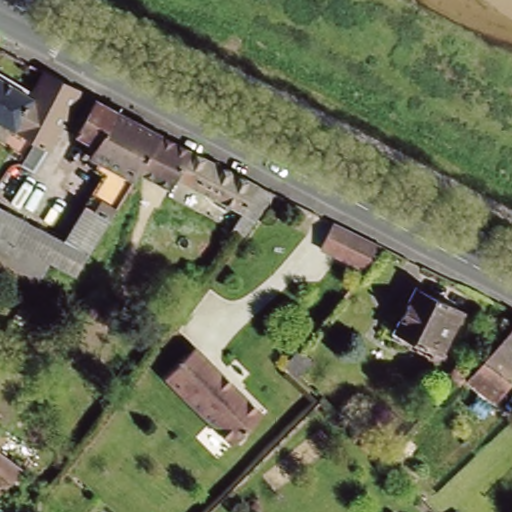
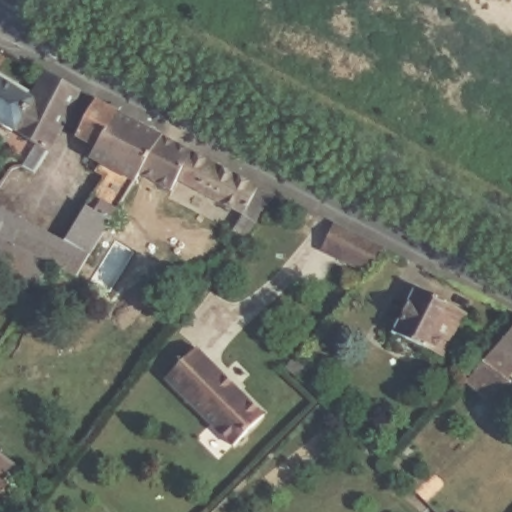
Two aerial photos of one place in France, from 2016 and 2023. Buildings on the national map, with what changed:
unchanged [(49,146),(48,148),(0,121),(0,77),(32,95),(45,72),(47,72),(79,90),(59,128),(49,146)]
unchanged [(0,233),(0,196),(14,177),(23,174),(42,184),(36,194),(30,191),(27,197),(26,196),(23,202),(27,204),(22,213),(67,236),(111,166),(92,156),(97,146),(77,135),(96,99),(162,134),(162,135),(141,170),(115,213),(114,214),(103,234),(79,272),(53,259),(0,233)]
unchanged [(244,213),(198,188),(202,180),(176,166),(166,184),(141,170),(162,135),(259,186),(275,193),(246,237),(235,229),(244,213)]
unchanged [(44,178),(34,173),(41,160),(48,148),(58,153),(44,178)]
unchanged [(361,270),(316,249),(329,222),(380,247),(361,270)]
unchanged [(475,306),(473,310),(469,308),(450,346),(455,348),(453,352),(398,325),(421,280),(475,306)]
unchanged [(512,373),(512,384),(498,399),(471,375),(512,330),(512,371),(511,372),(512,373)]
unchanged [(285,366),(305,343),(320,357),(299,378),(285,366)]
unchanged [(213,423),(169,378),(198,346),(266,413),(236,445),(213,423)]
unchanged [(0,495),(0,480),(9,487),(0,495)]

